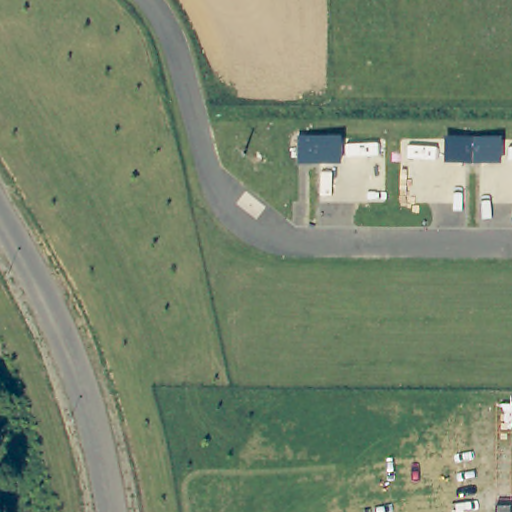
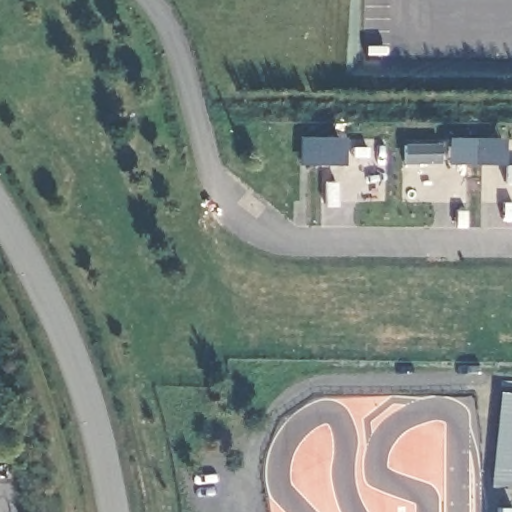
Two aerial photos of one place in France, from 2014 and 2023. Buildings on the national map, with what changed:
unchanged [(342,138),(342,166),(298,164),(300,137),(342,138)]
unchanged [(503,139),(502,166),(445,166),(445,138),(503,139)]
new [(512,489),(489,487),(497,392),(512,394),(512,489)]
new [(512,512),(496,512),(496,507),(511,507),(512,512)]

